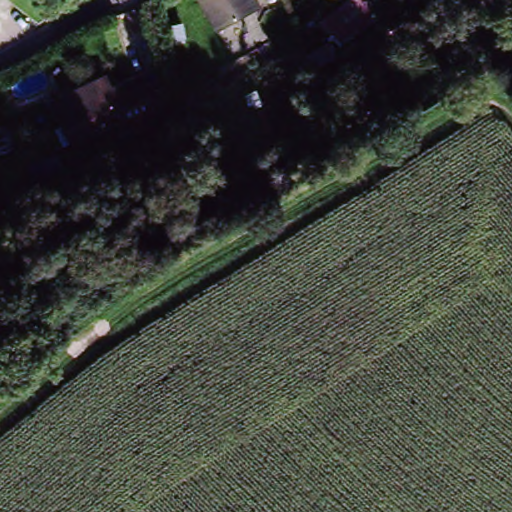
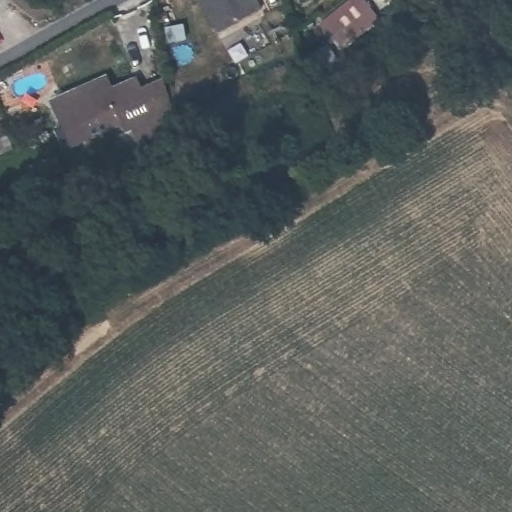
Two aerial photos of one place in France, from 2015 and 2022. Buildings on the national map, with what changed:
unchanged [(222,30),(205,0),(257,0),(262,10),(222,30)]
unchanged [(360,0),(379,24),(344,48),(325,19),(352,0),(360,0)]
unchanged [(103,78),(108,88),(132,75),(139,91),(159,81),(171,114),(127,136),(120,124),(73,146),(53,103),(103,78)]

